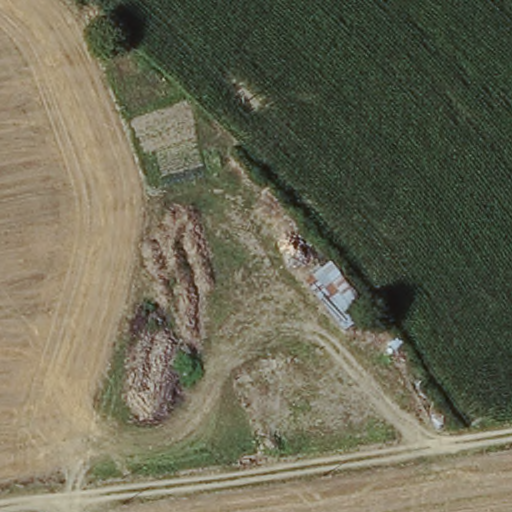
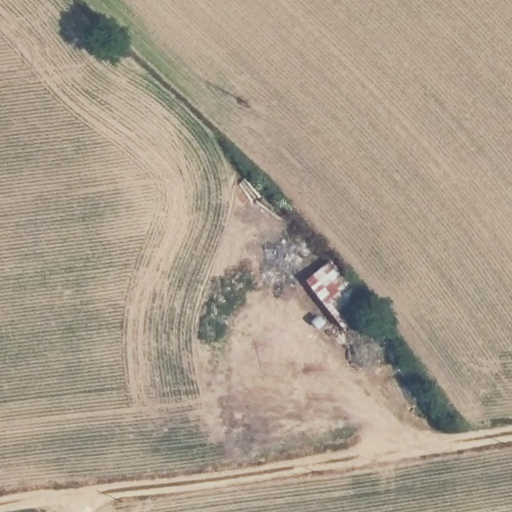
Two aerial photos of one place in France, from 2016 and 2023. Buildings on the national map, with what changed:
unchanged [(330,263),(372,314),(344,332),(304,281),(330,263)]

